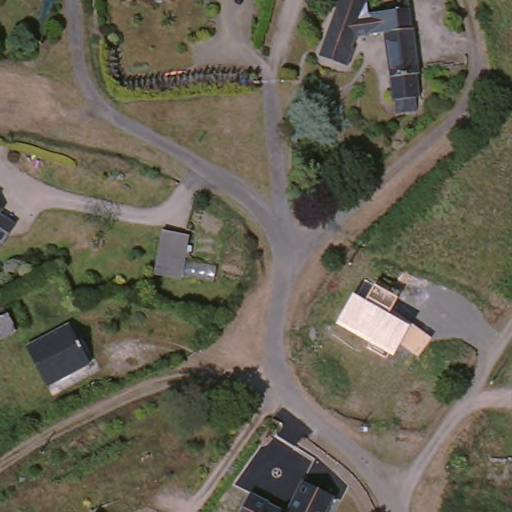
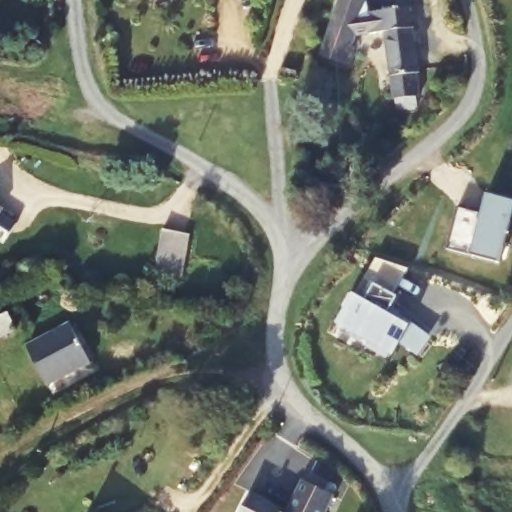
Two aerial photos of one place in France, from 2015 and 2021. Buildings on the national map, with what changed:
unchanged [(405,8),(405,0),(416,0),(427,71),(424,72),(426,94),(422,95),(423,110),(403,112),(402,98),(399,98),(391,32),(361,36),(358,45),(363,48),(353,65),(326,55),(346,0),(373,0),(373,9),(405,8)]
new [(486,213),(493,193),(512,199),(512,233),(503,264),(450,248),(463,206),(486,213)]
unchanged [(0,202),(5,205),(0,214),(0,202)]
unchanged [(183,283),(158,278),(167,234),(192,238),(183,283)]
unchanged [(418,356),(401,341),(393,355),(336,325),(355,293),(366,300),(374,285),(398,297),(390,312),(413,324),(433,338),(418,356)]
unchanged [(0,315),(5,313),(8,318),(12,317),(20,335),(0,343),(0,315)]
unchanged [(97,366),(54,389),(34,351),(78,329),(97,366)]
unchanged [(512,352),(512,353),(511,353),(512,352)]
unchanged [(332,512),(294,512),(309,479),(340,494),(332,512)]
unchanged [(276,501),(274,504),(290,512),(247,512),(258,492),(276,501)]

